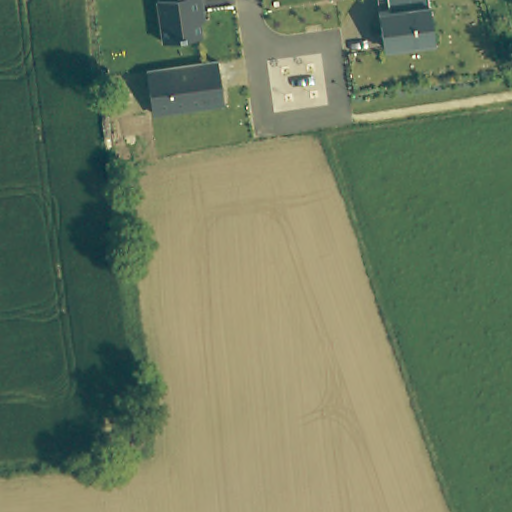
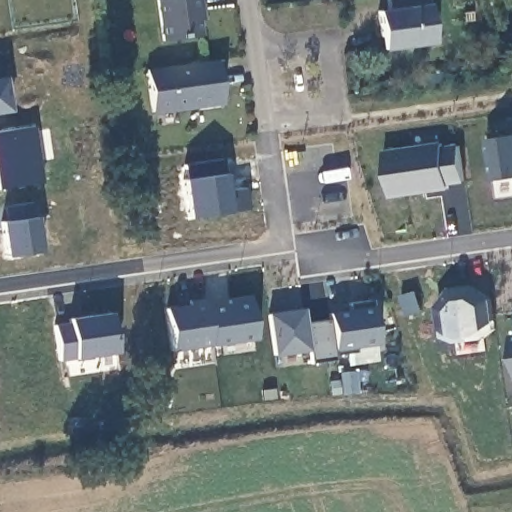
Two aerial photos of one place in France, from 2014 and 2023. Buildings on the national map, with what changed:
unchanged [(201,0),(203,20),(198,22),(201,37),(161,42),(153,0),(201,0)]
unchanged [(382,11),(392,10),(391,0),(432,0),(438,42),(391,49),(387,50),(385,37),(382,11)]
unchanged [(217,60),(223,104),(151,115),(145,70),(217,60)]
new [(1,76),(6,108),(0,109),(0,76),(1,76)]
new [(31,124),(39,180),(0,186),(0,129),(31,124)]
new [(512,178),(491,182),(485,137),(512,134),(512,178)]
new [(443,141),(445,148),(459,146),(465,181),(450,184),(450,190),(391,197),(384,150),(443,141)]
new [(5,219),(3,204),(30,200),(37,250),(3,255),(0,233),(0,220),(5,219)]
new [(190,304),(189,300),(204,297),(206,305),(228,302),(227,297),(250,294),(258,338),(173,352),(165,308),(190,304)]
new [(304,307),(307,322),(329,319),(329,311),(372,305),(377,345),(354,347),(354,352),(333,355),(334,360),(311,362),(309,351),(272,356),(267,312),(304,307)]
new [(67,321),(66,317),(108,311),(114,350),(57,359),(52,323),(67,321)]

